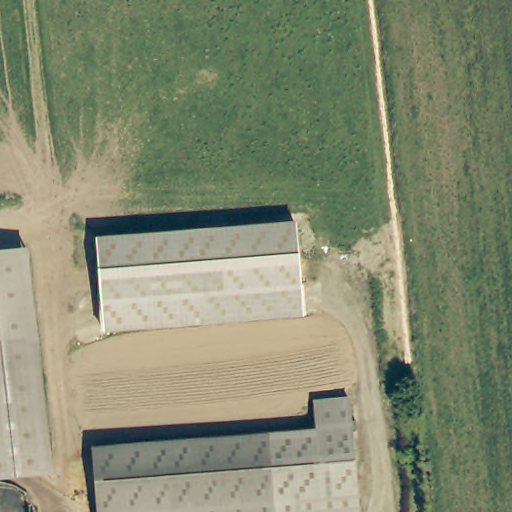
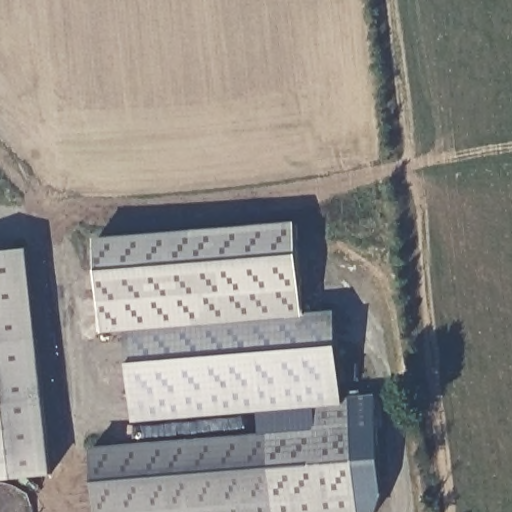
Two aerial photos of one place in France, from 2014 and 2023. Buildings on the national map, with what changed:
unchanged [(299,221),(306,312),(105,327),(99,236),(299,221)]
unchanged [(29,246),(36,317),(52,472),(47,472),(0,477),(0,250),(29,246)]
new [(317,399),(319,428),(260,433),(257,414),(134,422),(126,326),(306,312),(336,310),(342,397),(317,399)]
new [(351,397),(375,396),(381,495),(375,512),(360,512),(353,426),(351,397)]
unchanged [(317,399),(351,397),(353,426),(319,428),(317,399)]
unchanged [(100,512),(95,445),(319,428),(353,426),(360,512),(100,512)]

